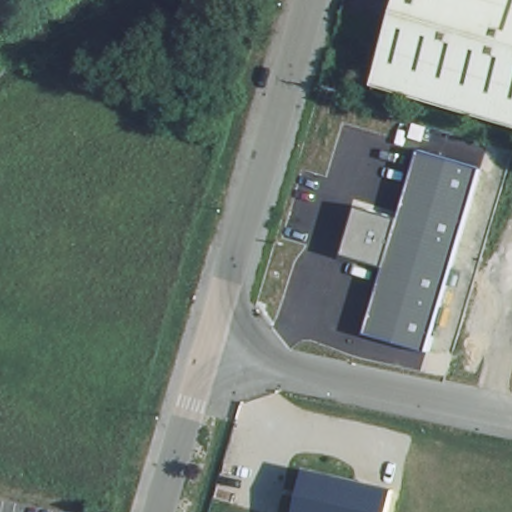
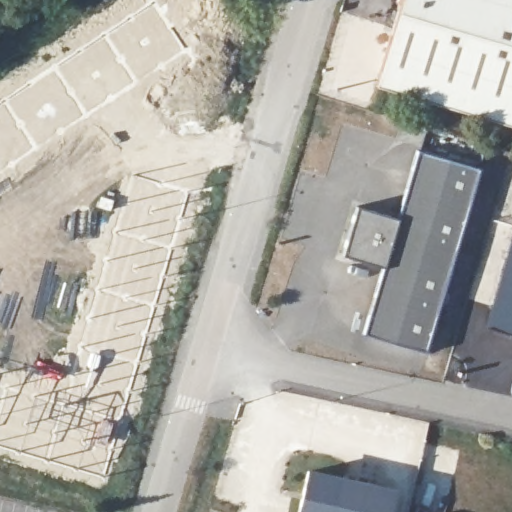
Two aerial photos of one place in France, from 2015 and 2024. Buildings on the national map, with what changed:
unchanged [(399,0),(512,0),(512,122),(375,82),(399,0)]
unchanged [(481,169),(428,350),(368,333),(386,268),(346,256),(359,205),(402,217),(423,152),(481,169)]
new [(485,328),(512,237),(512,336),(485,328)]
unchanged [(395,490),(391,512),(304,512),(313,472),(395,490)]

